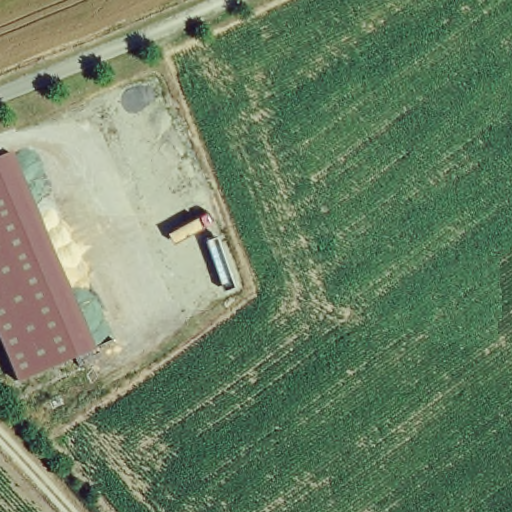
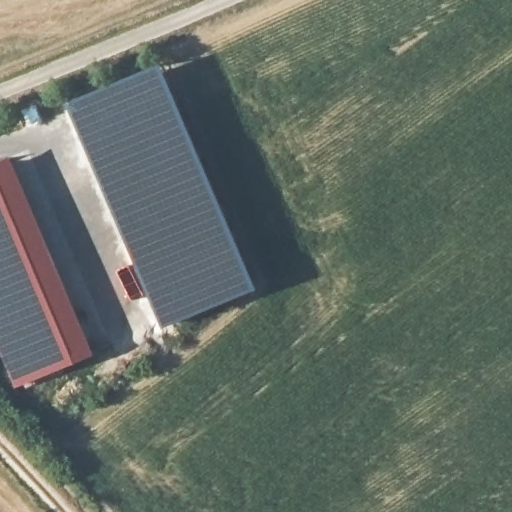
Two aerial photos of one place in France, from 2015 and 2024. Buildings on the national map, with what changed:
new [(155,61),(252,288),(159,328),(107,213),(60,101),(155,61)]
unchanged [(13,386),(0,354),(0,163),(7,159),(90,352),(13,386)]

